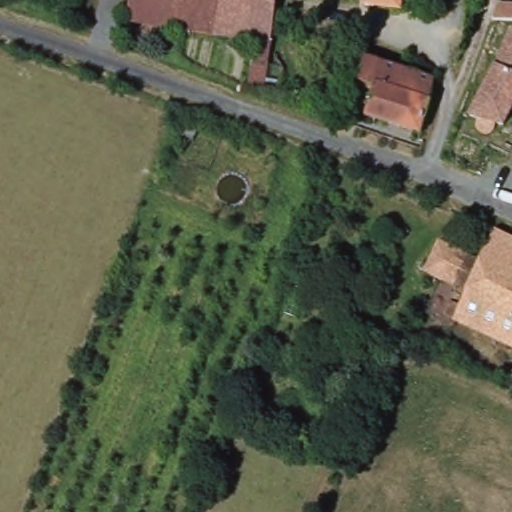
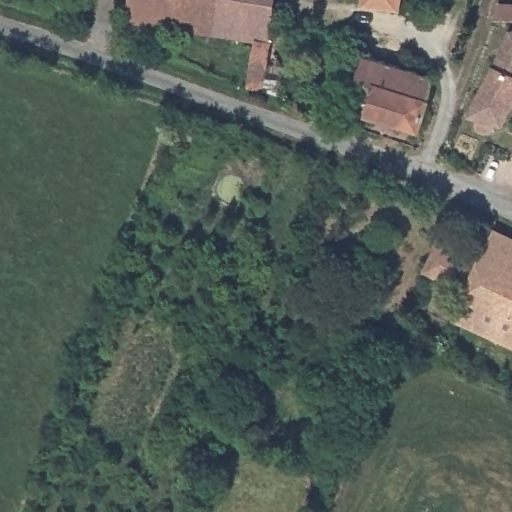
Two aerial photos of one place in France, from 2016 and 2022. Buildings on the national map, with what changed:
unchanged [(215,38),(214,41),(177,35),(125,26),(129,0),(222,0),(215,38)]
unchanged [(267,79),(280,82),(279,93),(247,87),(251,40),(215,38),(222,0),(278,0),(267,79)]
unchanged [(400,12),(364,7),(364,0),(402,0),(400,12)]
unchanged [(499,22),(502,0),(512,0),(512,24),(499,22)]
unchanged [(512,42),(512,76),(498,70),(512,42)]
unchanged [(359,89),(367,62),(435,83),(430,114),(421,141),(367,122),(375,94),(359,89)]
unchanged [(512,76),(512,119),(505,134),(499,132),(481,124),(473,121),(498,70),(512,76)]
unchanged [(512,241),(512,349),(498,342),(495,348),(488,346),(491,339),(455,322),(458,315),(444,307),(453,286),(424,273),(438,241),(466,254),(481,261),(494,232),(512,241)]

